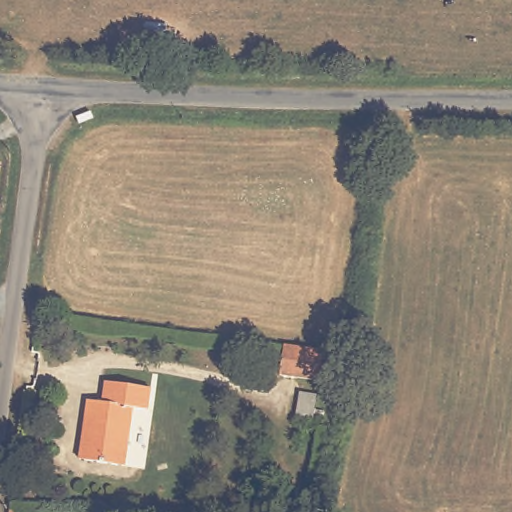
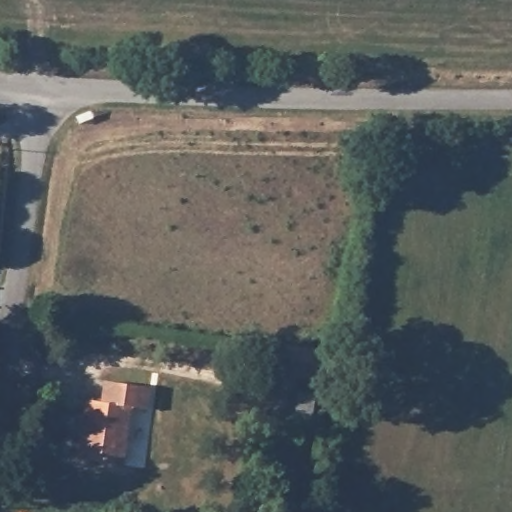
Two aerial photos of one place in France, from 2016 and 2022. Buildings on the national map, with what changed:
unchanged [(320,380),(281,373),(286,345),(324,350),(320,380)]
unchanged [(153,410),(137,409),(129,465),(87,460),(94,401),(109,402),(112,381),(156,387),(153,410)]
unchanged [(297,420),(302,393),(318,396),(313,422),(297,420)]

